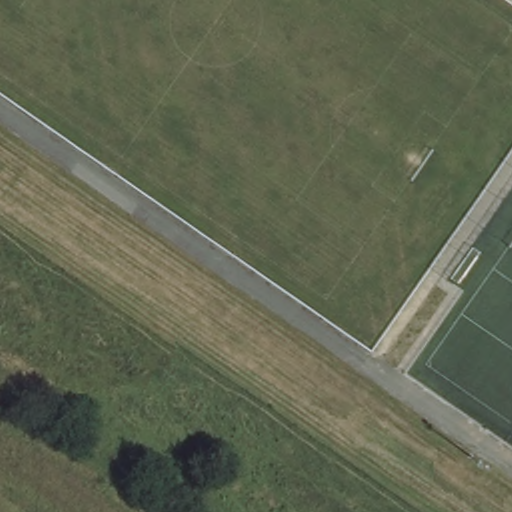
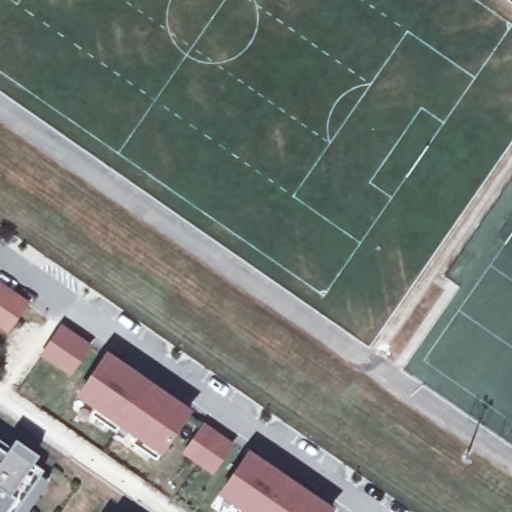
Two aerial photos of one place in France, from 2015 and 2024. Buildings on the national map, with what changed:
new [(25,305),(7,331),(0,327),(0,288),(25,305)]
new [(60,330),(87,348),(68,375),(42,356),(60,330)]
new [(120,371),(123,367),(133,374),(161,393),(171,400),(168,405),(185,416),(155,461),(130,445),(137,436),(120,425),(114,433),(90,416),(95,407),(78,396),(103,360),(120,371)]
new [(202,427),(229,446),(211,473),(183,454),(202,427)]
new [(40,471),(11,512),(0,512),(0,443),(40,471)]
new [(262,470),(265,465),(275,472),(303,491),(313,498),(310,502),(324,512),(234,512),(238,506),(220,495),(245,458),(262,470)]

